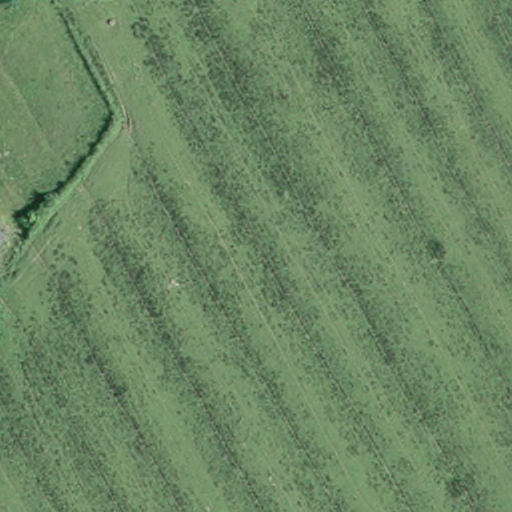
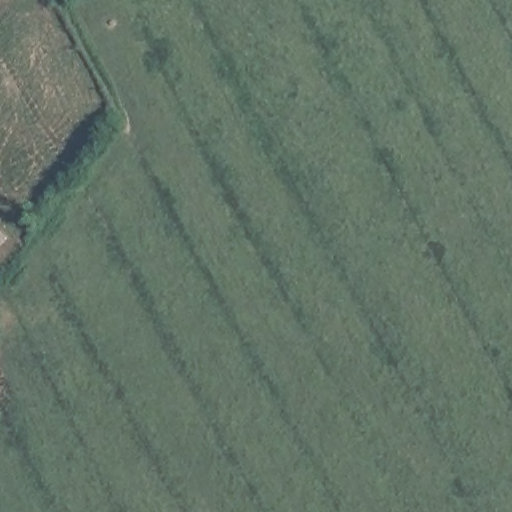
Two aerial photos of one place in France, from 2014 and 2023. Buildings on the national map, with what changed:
unchanged [(0,254),(0,223),(13,231),(0,254)]

